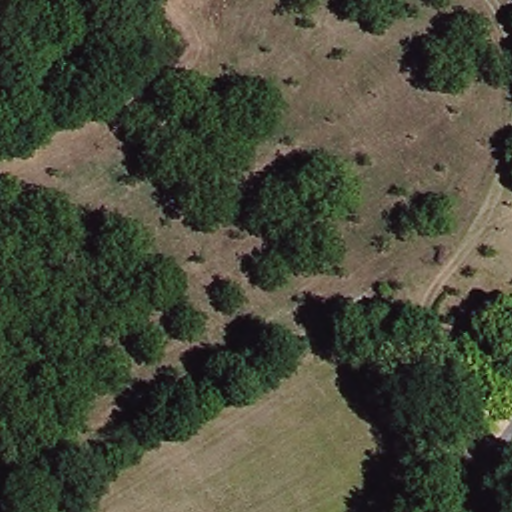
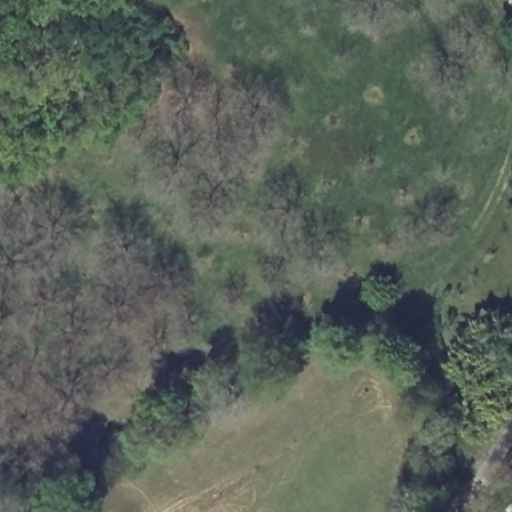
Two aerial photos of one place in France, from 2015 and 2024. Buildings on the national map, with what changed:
unchanged [(509,404),(498,415),(460,376),(470,365),(509,404)]

